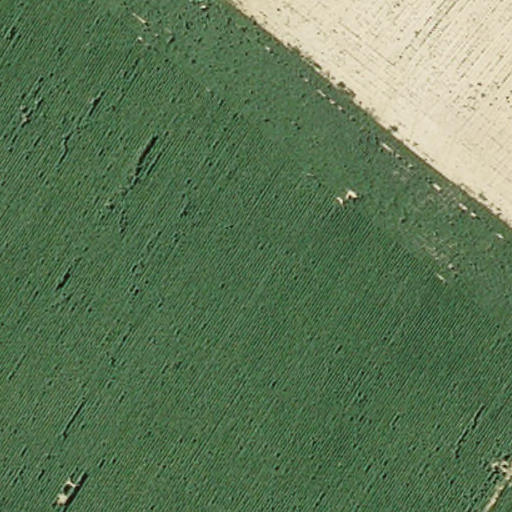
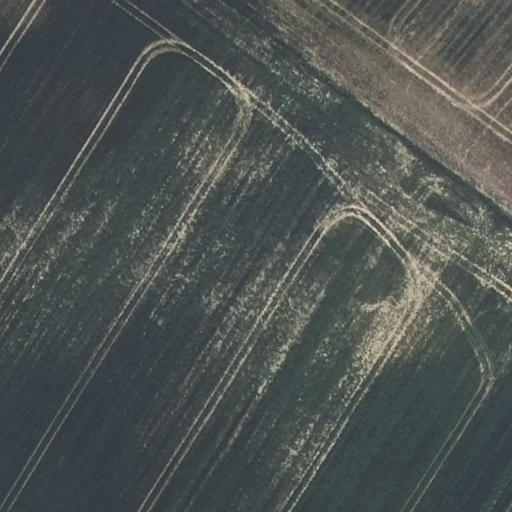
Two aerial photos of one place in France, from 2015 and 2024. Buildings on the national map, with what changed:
[]

